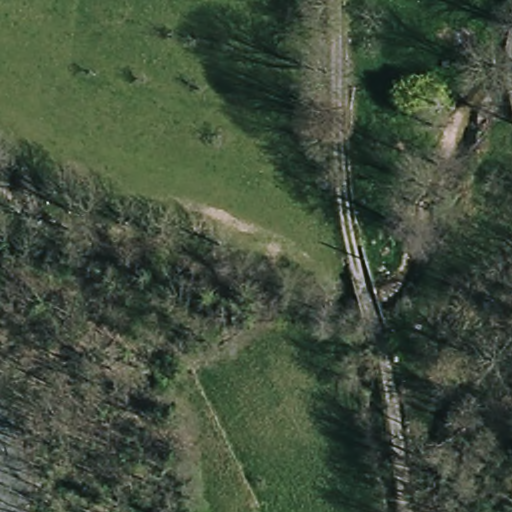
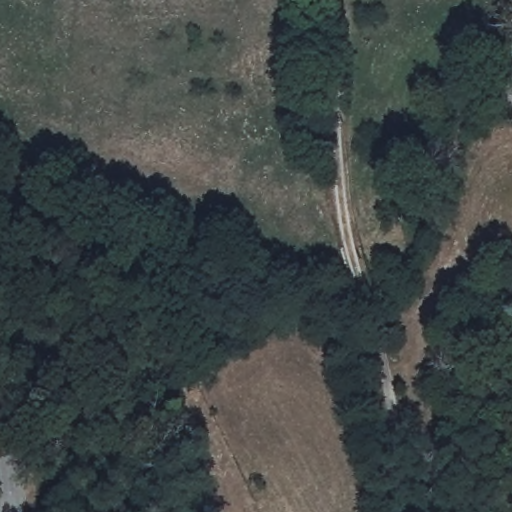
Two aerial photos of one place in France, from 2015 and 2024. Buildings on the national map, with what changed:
[]

